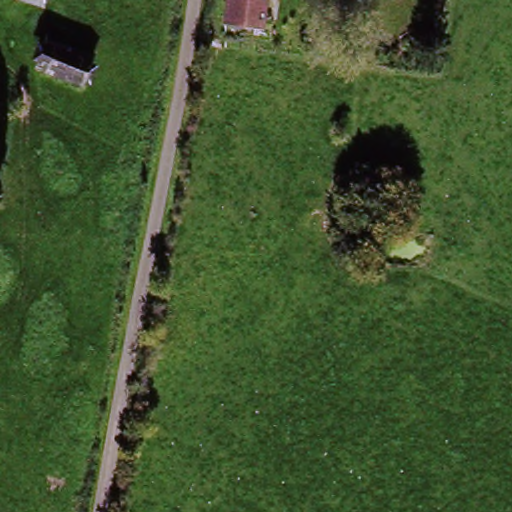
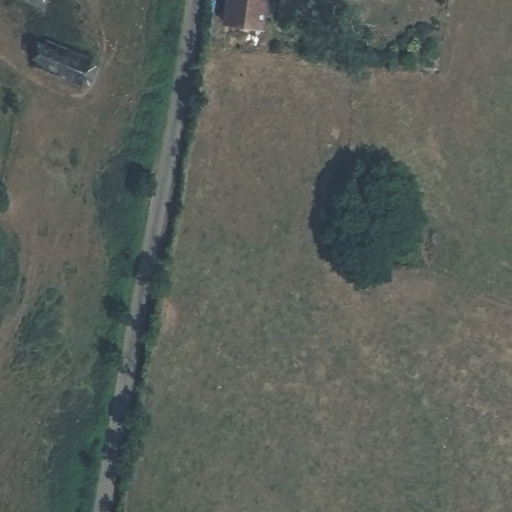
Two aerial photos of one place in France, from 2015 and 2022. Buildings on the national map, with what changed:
unchanged [(29,0),(44,0),(42,5),(29,0)]
unchanged [(212,21),(215,0),(266,0),(257,35),(212,21)]
unchanged [(98,58),(87,83),(52,68),(62,43),(98,58)]

